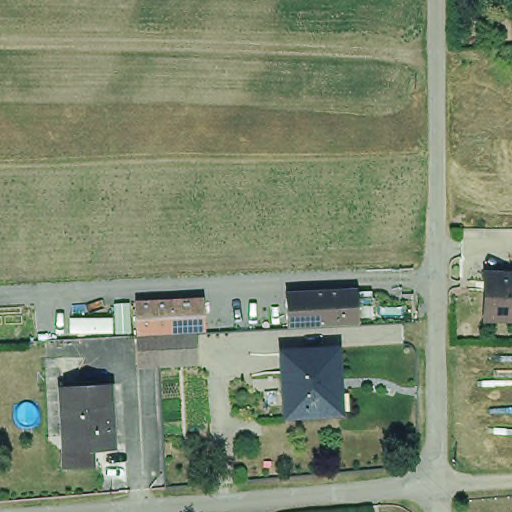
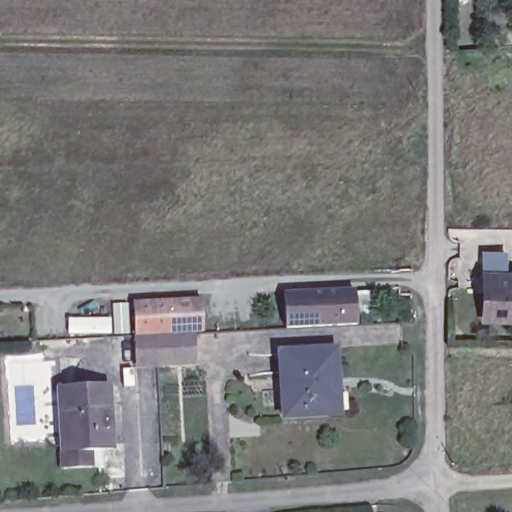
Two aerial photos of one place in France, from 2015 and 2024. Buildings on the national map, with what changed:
unchanged [(475,319),(475,290),(481,290),(481,271),(512,272),(512,320),(475,319)]
unchanged [(349,302),(350,329),(280,332),(278,305),(278,297),(344,294),(348,294),(349,302)]
unchanged [(200,303),(201,309),(202,336),(134,339),(132,312),(132,307),(200,303)]
unchanged [(154,339),(192,337),(193,367),(156,369),(136,370),(134,340),(154,339)]
unchanged [(332,414),(282,416),(279,352),(336,349),(337,372),(339,414),(332,414)]
unchanged [(62,462),(61,445),(60,445),(60,439),(56,380),(107,377),(111,442),(90,444),(88,444),(89,460),(62,462)]

